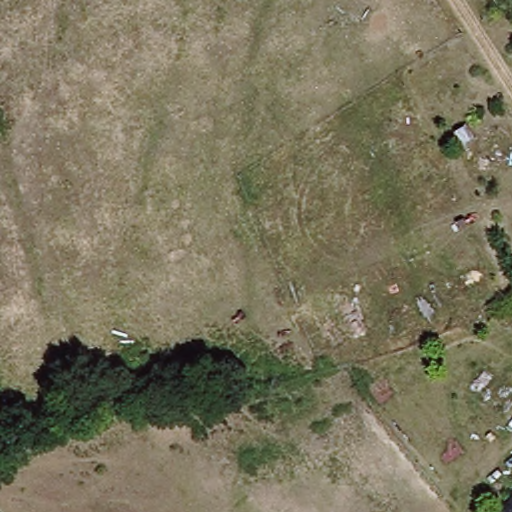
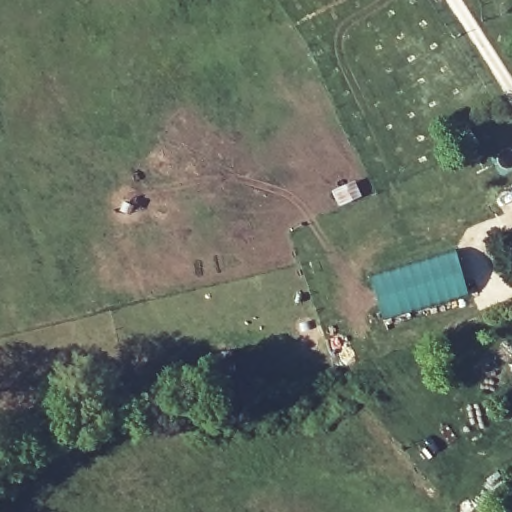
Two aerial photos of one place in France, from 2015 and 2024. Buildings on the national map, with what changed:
new [(467,296),(386,316),(387,320),(383,320),(373,283),(456,254),(462,277),(467,296)]

